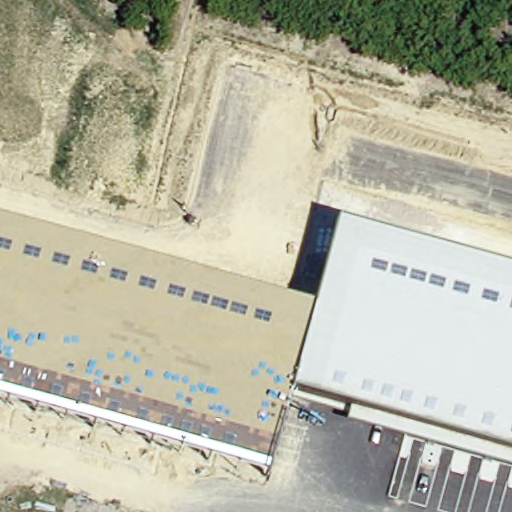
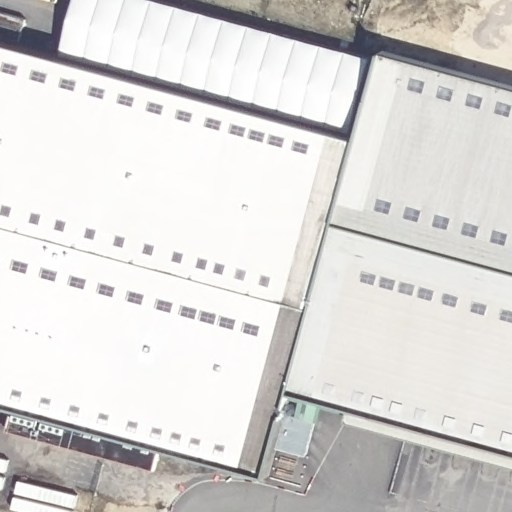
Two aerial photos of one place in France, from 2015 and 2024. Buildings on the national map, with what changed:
new [(351,135),(63,57),(77,0),(163,0),(372,57),(351,135)]
new [(0,222),(0,50),(356,144),(337,221),(312,306),(0,222)]
new [(512,85),(512,267),(337,221),(356,144),(383,50),(512,85)]
new [(0,400),(0,222),(312,306),(337,221),(512,267),(512,448),(290,387),(266,472),(0,400)]

